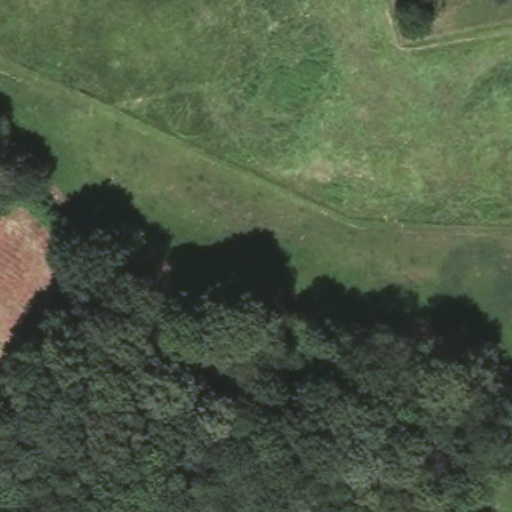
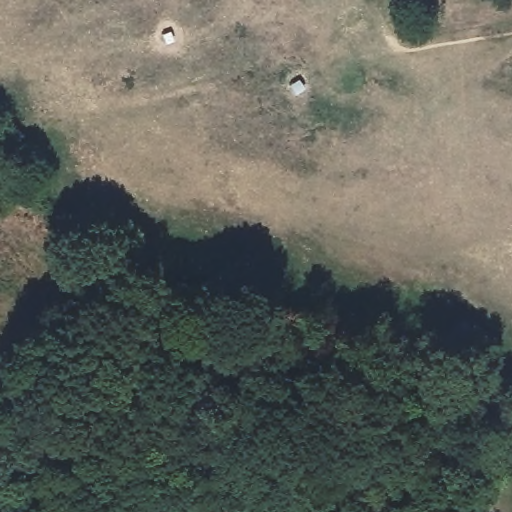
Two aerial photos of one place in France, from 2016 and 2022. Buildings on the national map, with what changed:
[]

